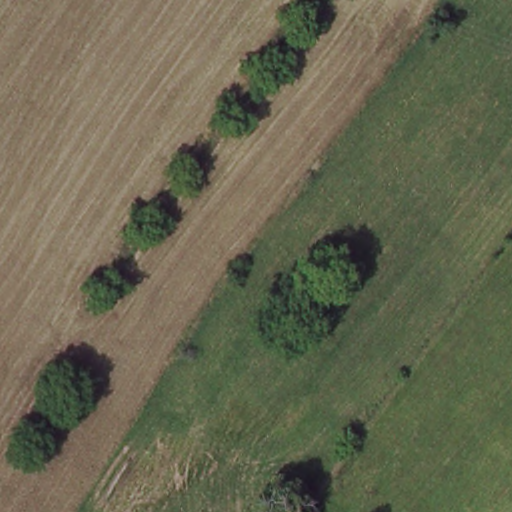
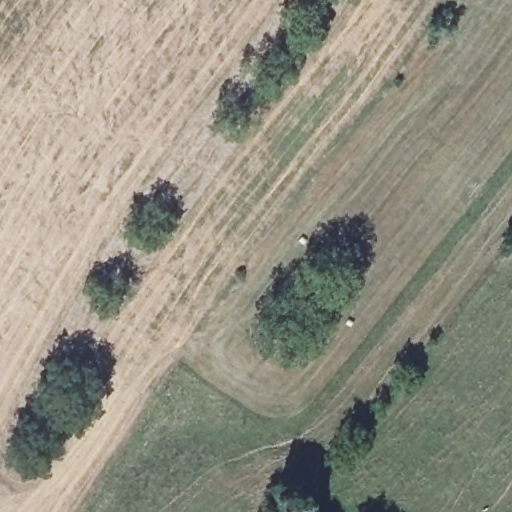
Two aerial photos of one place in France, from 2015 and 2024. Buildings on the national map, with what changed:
[]

